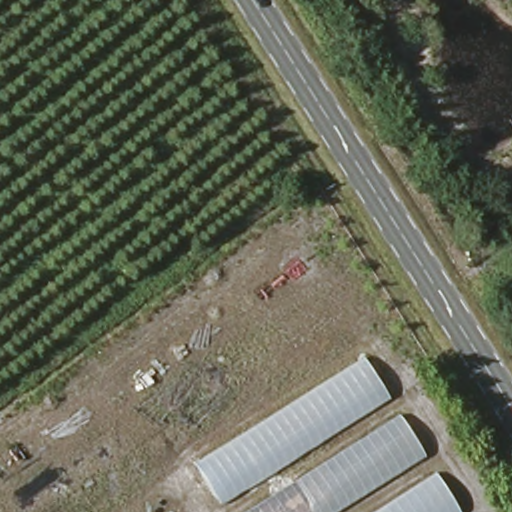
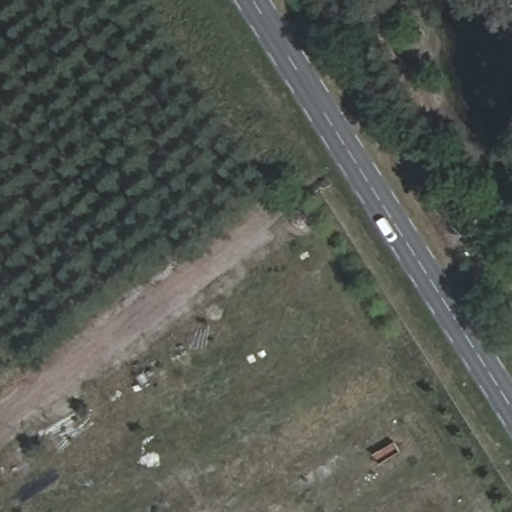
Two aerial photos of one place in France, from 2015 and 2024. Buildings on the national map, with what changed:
demolished [(393,397),(220,507),(194,463),(364,354),(393,397)]
demolished [(240,512),(396,413),(456,512),(240,512)]

